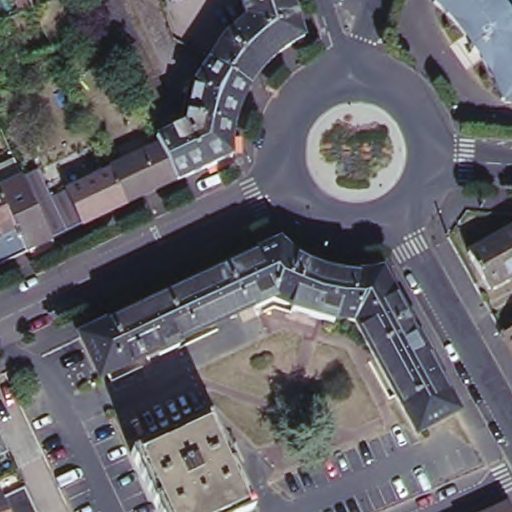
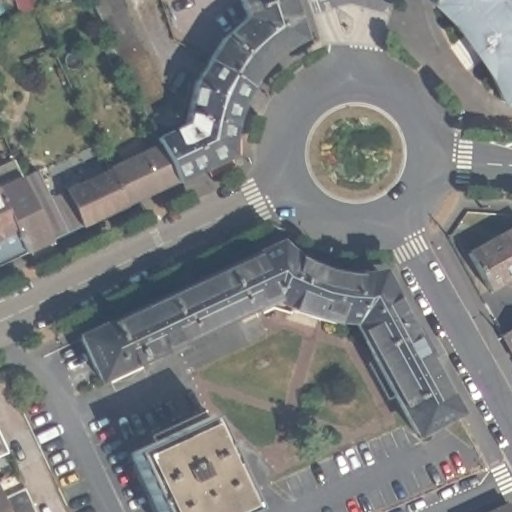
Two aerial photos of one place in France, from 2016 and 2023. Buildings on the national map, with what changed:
unchanged [(31,0),(33,8),(21,14),(16,0),(31,0)]
unchanged [(150,117),(95,0),(125,0),(174,105),(150,117)]
unchanged [(245,0),(296,0),(308,39),(302,42),(295,46),(288,50),(282,55),(277,60),(271,66),(265,72),(261,77),(255,86),(214,61),(227,40),(252,19),(245,0)]
unchanged [(506,103),(501,100),(498,93),(496,86),(492,80),(490,72),(486,66),(482,60),(492,51),(488,46),(481,52),(478,53),(476,54),(473,53),(472,51),(470,50),(469,48),(468,45),(469,43),(470,41),(472,40),(480,34),(476,29),(465,36),(460,30),(455,25),(450,19),(445,14),(440,9),(433,4),(433,0),(507,0),(508,0),(512,2),(512,103),(506,103)]
unchanged [(182,182),(181,181),(164,145),(161,140),(190,125),(200,82),(205,75),(214,61),(255,86),(252,91),(249,96),(247,101),(245,105),(244,109),(242,113),(241,117),(240,121),(239,125),(238,130),(237,136),(237,141),(237,146),(237,151),(237,156),(182,182)]
unchanged [(115,171),(130,164),(128,161),(164,145),(181,181),(132,205),(115,171)]
unchanged [(27,177),(42,170),(56,199),(115,171),(132,205),(57,240),(27,177)]
unchanged [(57,240),(57,241),(32,253),(2,190),(27,177),(57,240)]
unchanged [(32,253),(0,269),(0,185),(2,190),(32,253)]
unchanged [(468,249),(512,224),(512,271),(488,285),(468,249)]
unchanged [(75,337),(271,246),(271,245),(291,260),(292,260),(291,264),(301,266),(340,278),(350,280),(350,277),(352,278),(377,275),(377,276),(410,338),(413,336),(423,356),(421,357),(451,412),(411,435),(350,322),(330,316),(328,323),(305,317),(287,312),(288,307),(268,301),(249,310),(247,307),(172,343),(174,348),(154,357),(152,352),(134,360),(137,368),(107,383),(102,375),(95,379),(75,337)]
unchanged [(497,335),(512,326),(512,362),(497,335)]
unchanged [(136,453),(215,416),(258,510),(253,512),(163,512),(136,453)]
unchanged [(0,444),(0,439),(2,443),(0,444)]
unchanged [(9,456),(0,461),(0,444),(2,443),(9,456)]
unchanged [(25,493),(32,506),(20,512),(0,512),(0,501),(2,504),(25,493)]
unchanged [(512,498),(512,500),(512,512),(482,512),(512,498)]
unchanged [(34,512),(20,512),(32,506),(34,512)]

